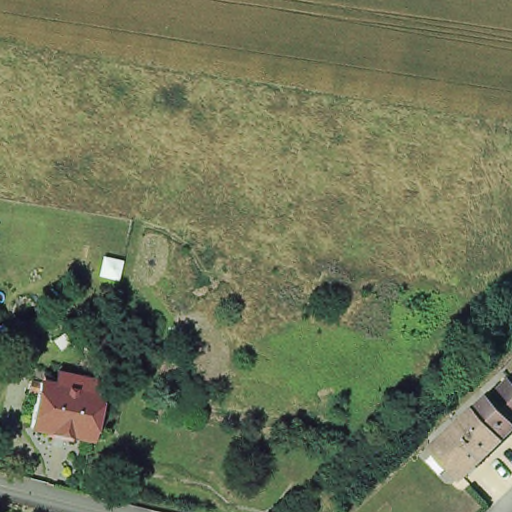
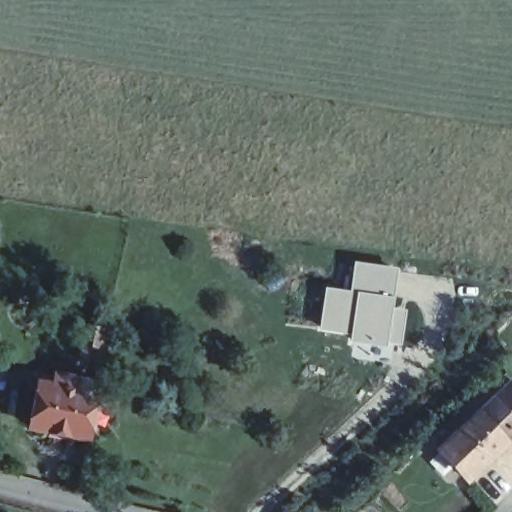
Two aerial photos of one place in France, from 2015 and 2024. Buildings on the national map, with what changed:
new [(400,269),(396,308),(410,308),(404,348),(387,346),(387,350),(350,344),(351,338),(320,333),(325,287),(350,291),(354,262),(400,269)]
unchanged [(84,329),(103,333),(100,352),(80,348),(84,329)]
unchanged [(92,396),(95,397),(87,441),(67,437),(65,442),(47,438),(48,433),(28,429),(37,384),(48,387),(50,375),(64,377),(75,380),(94,384),(92,396)]
unchanged [(432,453),(470,417),(487,402),(488,404),(507,385),(512,391),(512,428),(512,429),(512,430),(497,445),(459,481),(432,453)]

